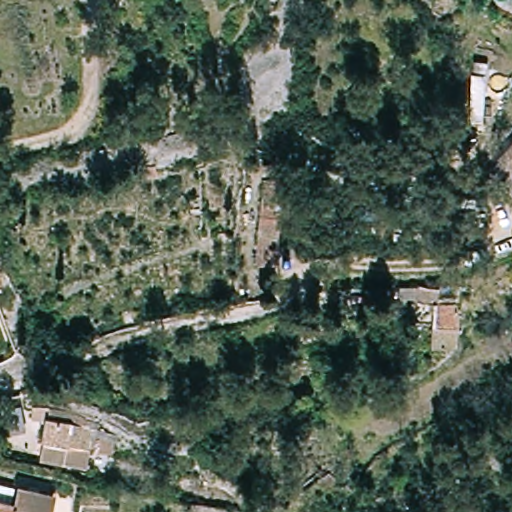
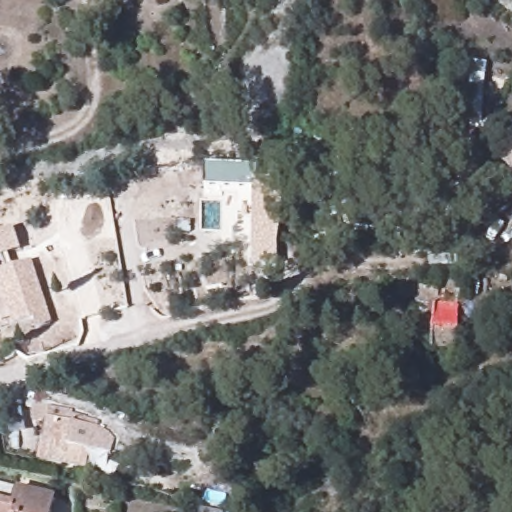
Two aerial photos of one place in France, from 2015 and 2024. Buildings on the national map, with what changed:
unchanged [(478,128),(482,81),(496,82),(493,129),(478,128)]
unchanged [(508,171),(504,175),(488,159),(512,134),(512,174),(508,171)]
demolished [(275,177),(275,180),(277,212),(272,233),(273,263),(252,263),(252,249),(252,245),(255,213),(258,176),(275,177)]
new [(283,188),(275,266),(255,264),(263,186),(283,188)]
new [(21,250),(9,254),(13,267),(32,261),(52,325),(37,330),(33,320),(14,327),(0,285),(0,231),(13,226),(21,250)]
demolished [(0,282),(0,238),(10,279),(0,282)]
unchanged [(415,291),(415,289),(425,292),(437,293),(435,308),(456,309),(455,354),(428,354),(431,310),(422,307),(413,305),(414,303),(398,303),(399,291),(415,291)]
unchanged [(35,442),(34,442),(39,406),(67,410),(64,422),(90,428),(110,434),(109,442),(107,442),(105,454),(87,450),(82,449),(79,466),(79,467),(32,457),(35,442)]
unchanged [(9,501),(48,510),(48,512),(7,512),(9,501)]

